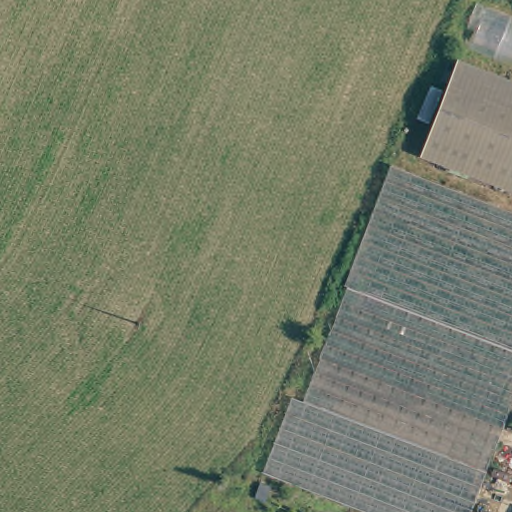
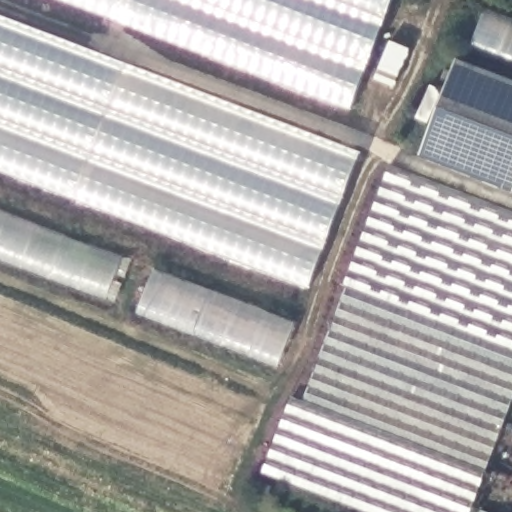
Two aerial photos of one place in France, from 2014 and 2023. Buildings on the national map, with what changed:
new [(59,0),(392,0),(349,110),(59,0)]
unchanged [(512,69),(470,53),(484,14),(512,25),(512,69)]
new [(361,154),(308,289),(0,173),(0,17),(361,154)]
unchanged [(512,85),(512,192),(420,157),(455,64),(512,85)]
unchanged [(264,467),(392,170),(512,213),(512,407),(472,512),(375,512),(264,467)]
new [(120,260),(105,298),(0,258),(0,215),(120,260)]
new [(295,324),(278,368),(137,315),(153,271),(295,324)]

